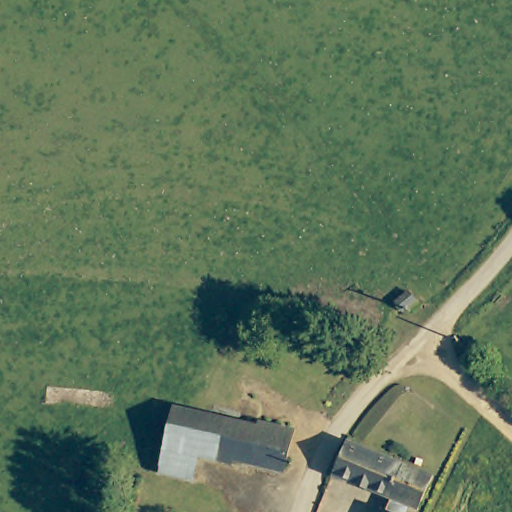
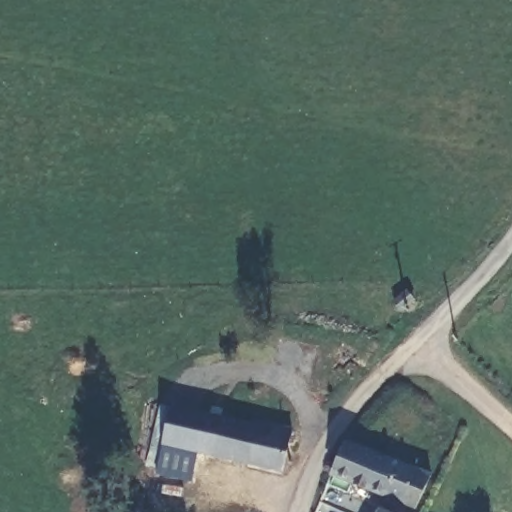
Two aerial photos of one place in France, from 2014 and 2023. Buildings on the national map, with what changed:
unchanged [(193,482),(160,473),(174,410),(241,425),(234,461),(200,452),(193,482)]
unchanged [(260,430),(261,425),(296,432),(286,473),(234,461),(241,425),(260,430)]
unchanged [(389,498),(336,476),(347,442),(443,480),(430,511),(419,507),(418,510),(416,512),(382,512),(385,507),(389,498)]

